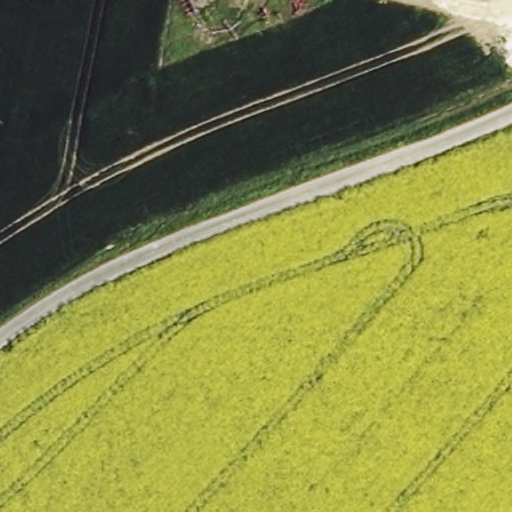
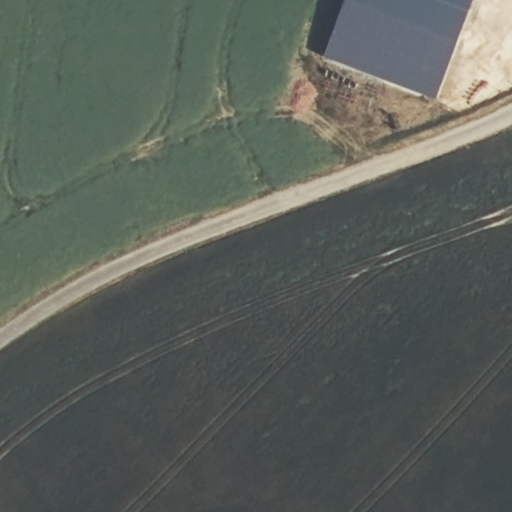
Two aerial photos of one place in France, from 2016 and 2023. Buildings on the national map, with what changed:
new [(346,0),(471,0),(437,93),(325,52),(346,0)]

